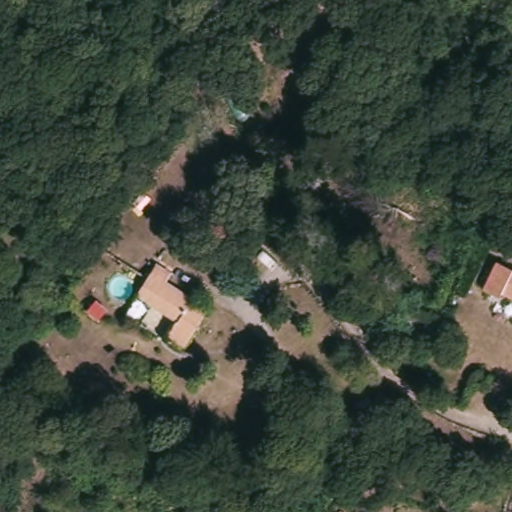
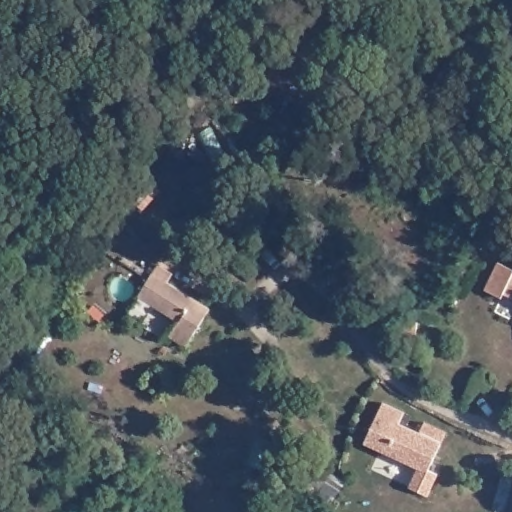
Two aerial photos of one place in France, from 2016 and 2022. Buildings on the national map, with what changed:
unchanged [(512,264),(512,296),(502,290),(500,294),(484,285),(500,257),(512,264)]
unchanged [(139,297),(154,272),(155,272),(160,265),(174,273),(169,282),(211,309),(188,346),(169,335),(177,321),(139,297)]
new [(382,399),(403,410),(397,421),(417,431),(422,422),(442,432),(437,442),(438,443),(425,468),(433,473),(422,495),(404,485),(414,466),(361,439),(382,399)]

